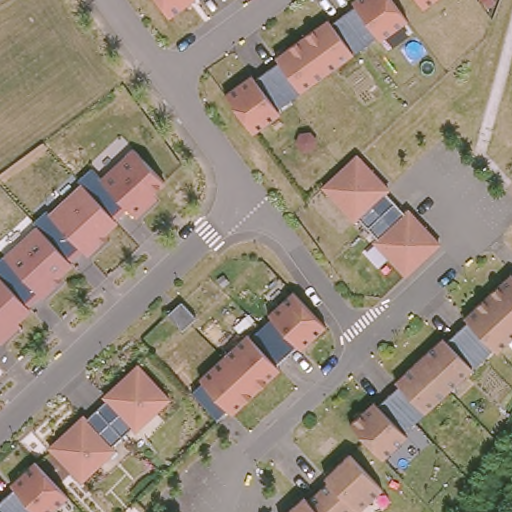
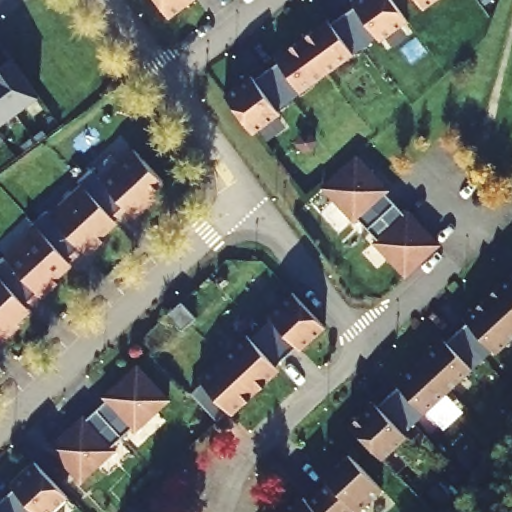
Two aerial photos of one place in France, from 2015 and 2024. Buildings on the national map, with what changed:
unchanged [(171,20),(155,0),(196,0),(197,2),(171,20)]
unchanged [(253,137),(222,97),(252,73),(257,79),(277,64),(273,57),(325,17),(330,24),(355,9),(350,1),(351,0),(394,0),(410,23),(380,44),(375,36),(275,109),(280,116),(253,137)]
unchanged [(437,0),(422,10),(415,0),(437,0)]
new [(12,59),(38,93),(0,122),(0,67),(12,59)]
unchanged [(147,189),(157,199),(135,219),(126,212),(0,332),(0,253),(89,167),(98,177),(130,149),(157,176),(147,189)]
unchanged [(369,243),(373,238),(357,221),(352,225),(317,190),(357,152),(390,189),(385,195),(403,216),(410,210),(440,244),(405,277),(369,243)]
unchanged [(512,276),(512,324),(487,296),(500,284),(510,274),(512,276)]
unchanged [(227,410),(216,421),(188,392),(295,292),(327,327),(300,352),(294,347),(276,366),(280,371),(232,416),(227,410)]
unchanged [(492,350),(482,360),(457,332),(467,322),(464,317),(475,307),(487,296),(512,324),(512,338),(495,353),(492,350)]
unchanged [(147,308),(149,307),(156,300),(163,307),(154,316),(147,308)]
unchanged [(443,337),(447,342),(457,332),(482,360),(448,392),(418,360),(432,347),(443,337)]
unchanged [(414,423),(388,396),(398,386),(395,382),(406,372),(418,360),(448,392),(414,423)]
unchanged [(83,413),(87,417),(105,402),(100,398),(137,362),(172,399),(137,434),(133,429),(113,447),(117,452),(80,482),(46,448),(83,413)]
unchanged [(414,423),(403,433),(407,437),(382,460),(365,440),(350,425),(363,412),(374,402),(378,406),(388,396),(414,423)]
unchanged [(382,490),(357,512),(354,508),(350,512),(338,512),(318,491),(328,482),(325,477),(336,467),(350,455),(382,490)]
unchanged [(15,491),(10,486),(35,461),(68,497),(53,512),(0,512),(0,503),(15,491)]
unchanged [(293,507),(304,497),(308,501),(318,491),(338,512),(288,512),(293,507)]

